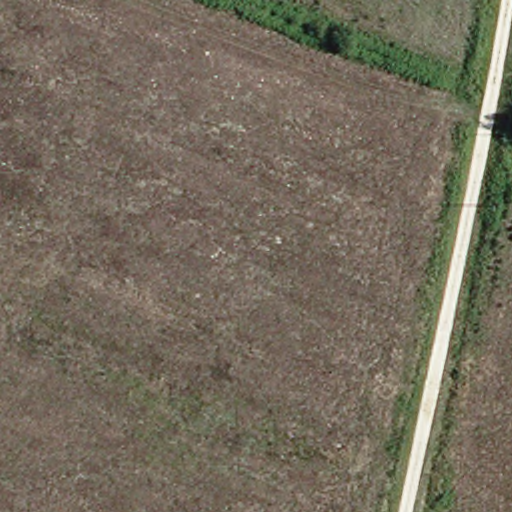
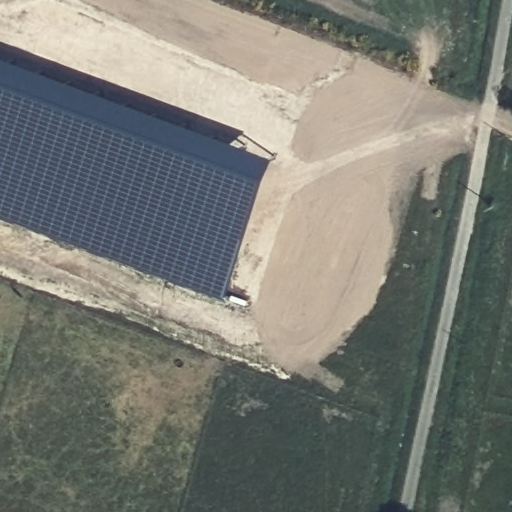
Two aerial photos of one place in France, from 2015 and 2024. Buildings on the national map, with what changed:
new [(0,215),(0,52),(282,156),(231,297),(0,215)]

